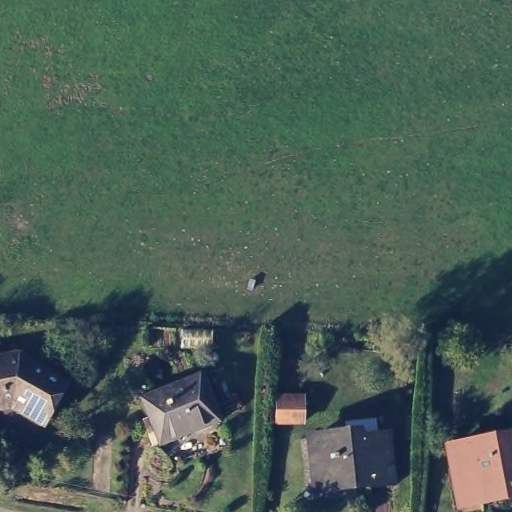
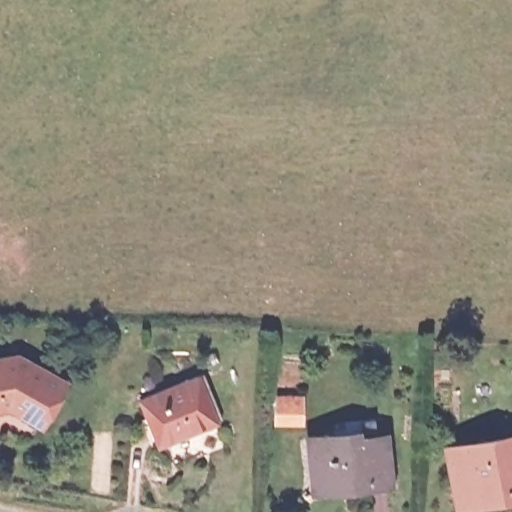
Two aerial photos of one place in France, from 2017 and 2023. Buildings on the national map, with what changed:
unchanged [(10,391),(5,392),(0,392),(0,345),(18,342),(65,368),(45,403),(42,409),(14,393),(10,391)]
unchanged [(159,442),(140,394),(200,370),(204,368),(222,414),(218,416),(218,417),(159,442)]
unchanged [(302,422),(276,422),(277,401),(303,401),(302,422)]
unchanged [(494,493),(492,486),(455,493),(453,483),(445,438),(512,426),(512,490),(494,493)]
unchanged [(320,479),(316,434),(353,430),(354,436),(390,432),(395,477),(355,482),(321,485),(320,479)]

